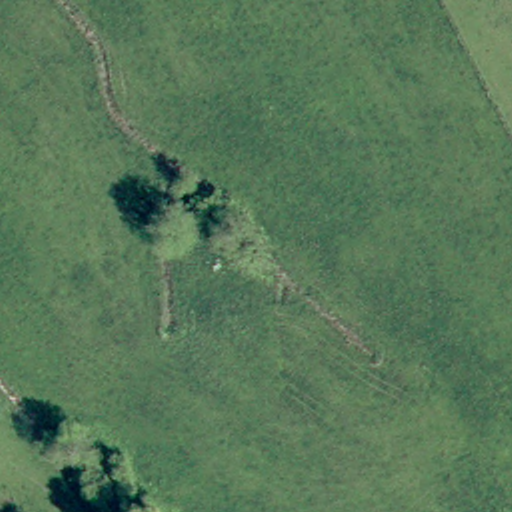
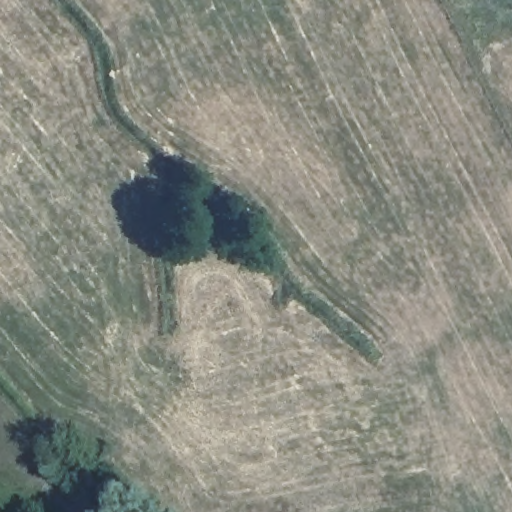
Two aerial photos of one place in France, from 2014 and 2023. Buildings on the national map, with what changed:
[]

